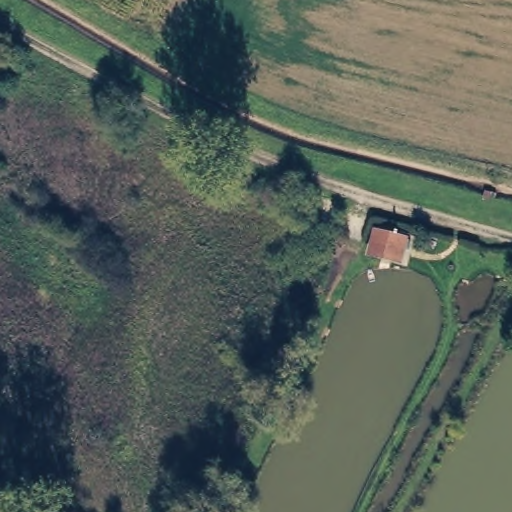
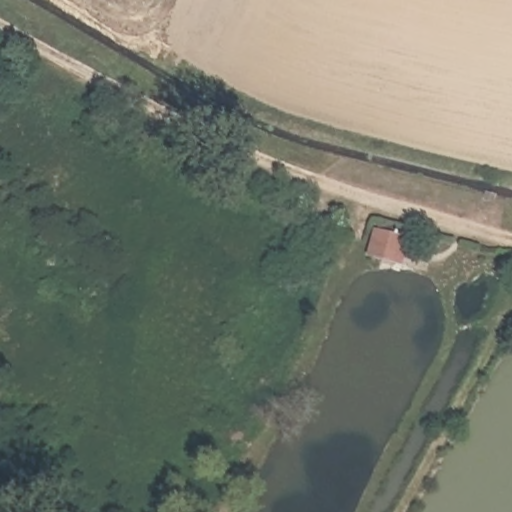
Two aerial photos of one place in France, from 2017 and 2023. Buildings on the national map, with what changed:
unchanged [(387,258),(388,252),(393,233),(420,239),(415,259),(413,265),(387,258)]

